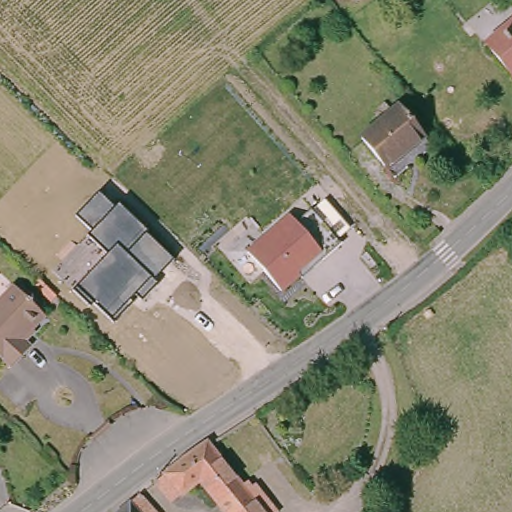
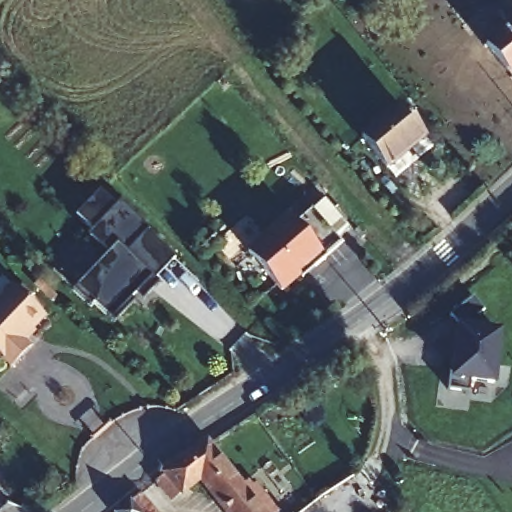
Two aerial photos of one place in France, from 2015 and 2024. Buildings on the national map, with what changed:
unchanged [(512,17),(512,71),(485,39),(512,17)]
unchanged [(423,135),(388,165),(360,130),(395,101),(423,135)]
unchanged [(157,284),(142,301),(135,294),(129,300),(132,304),(114,323),(95,304),(90,308),(72,291),(108,255),(88,236),(92,232),(75,216),(99,192),(116,208),(120,205),(147,232),(145,235),(172,260),(154,280),(157,284)]
unchanged [(296,222),(312,210),(325,199),(350,228),(337,240),(340,244),(301,277),(282,292),(247,251),(289,215),(296,222)]
unchanged [(0,347),(0,284),(7,276),(41,305),(20,327),(31,337),(12,357),(0,347)]
new [(484,311),(476,317),(482,327),(502,330),(496,386),(470,384),(469,392),(448,390),(450,380),(458,326),(449,317),(474,298),(484,311)]
unchanged [(235,512),(197,470),(172,487),(157,470),(202,434),(273,512),(235,512)]
unchanged [(125,496),(135,488),(154,510),(152,512),(139,512),(112,512),(109,509),(125,496)]

